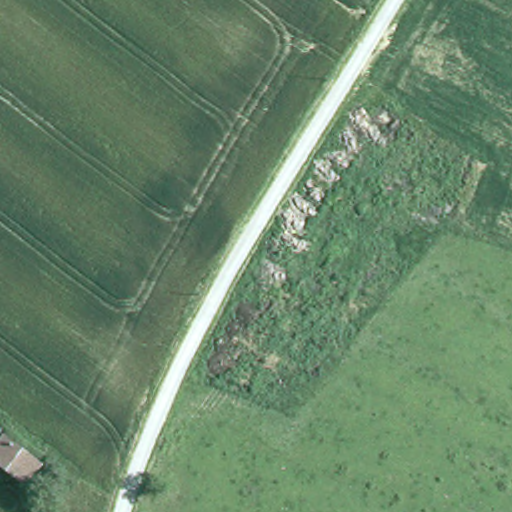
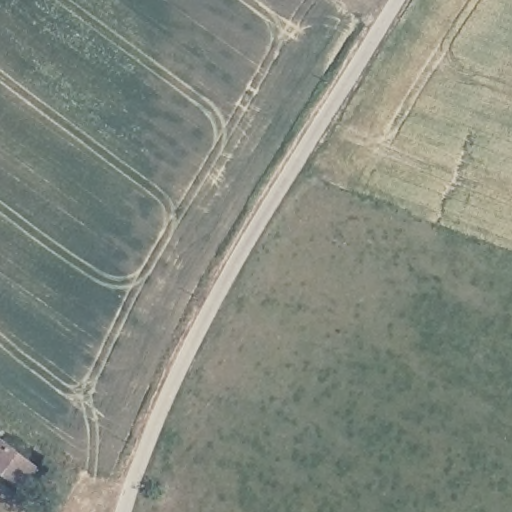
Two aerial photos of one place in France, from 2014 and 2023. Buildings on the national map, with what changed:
unchanged [(43,465),(32,480),(25,488),(0,468),(0,451),(10,438),(43,465)]

